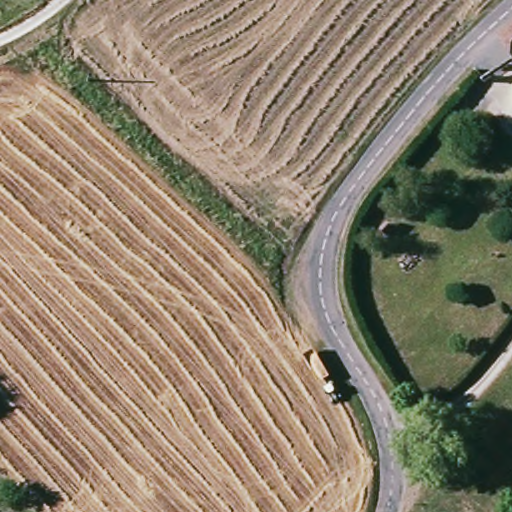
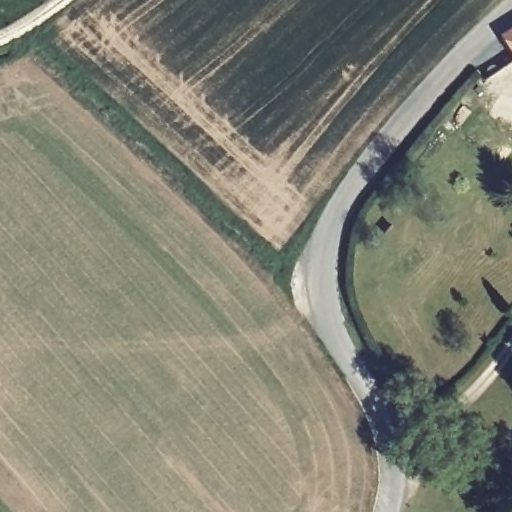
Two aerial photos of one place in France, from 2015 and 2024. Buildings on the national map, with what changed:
unchanged [(502,36),(512,29),(512,52),(502,36)]

